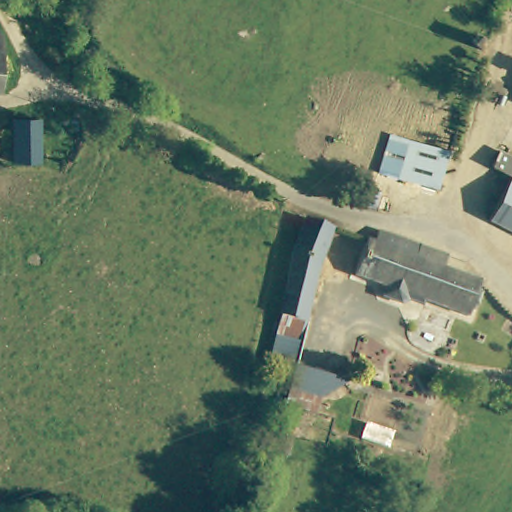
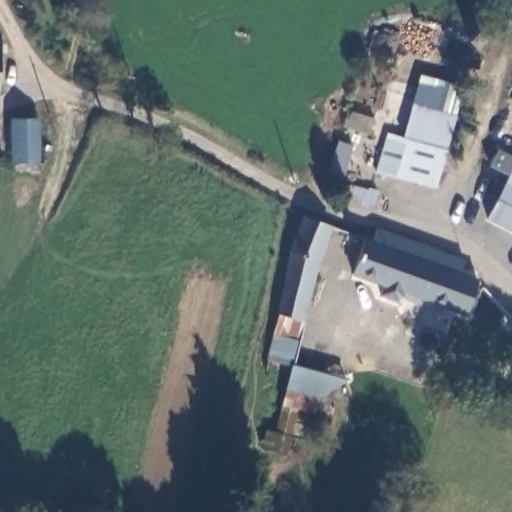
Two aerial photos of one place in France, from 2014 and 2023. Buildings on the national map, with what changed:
new [(376,172),(387,133),(404,138),(420,75),(464,86),(448,153),(405,139),(392,176),(376,172)]
unchanged [(20,122),(34,121),(37,160),(12,161),(9,122),(20,122)]
unchanged [(405,139),(448,153),(436,190),(392,176),(405,139)]
unchanged [(503,179),(490,174),(495,156),(512,163),(512,234),(489,224),(503,179)]
unchanged [(299,215),(327,221),(296,342),(270,334),(299,215)]
unchanged [(351,272),(362,238),(369,240),(372,229),(438,254),(435,263),(452,269),(475,279),(464,312),(460,310),(351,272)]
unchanged [(285,412),(287,403),(293,377),(322,384),(316,407),(313,419),(285,412)]

